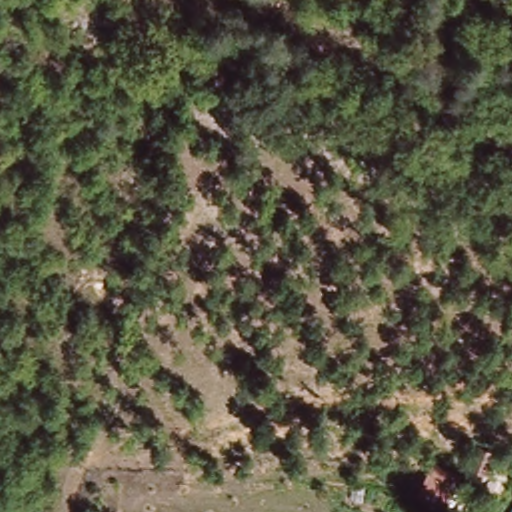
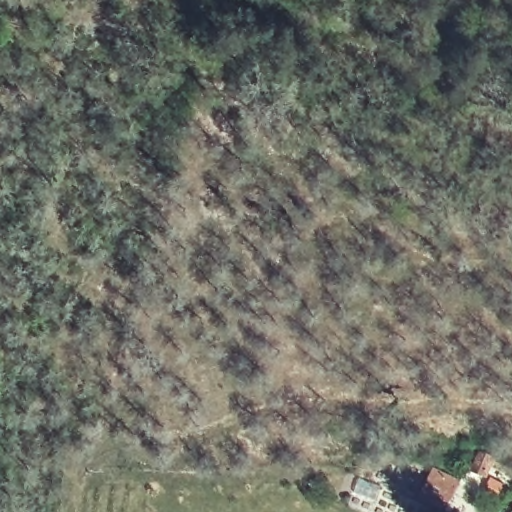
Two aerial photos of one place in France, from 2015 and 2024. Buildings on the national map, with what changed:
unchanged [(469,460),(492,468),(487,483),(464,475),(469,460)]
unchanged [(433,467),(459,478),(444,510),(418,497),(433,467)]

